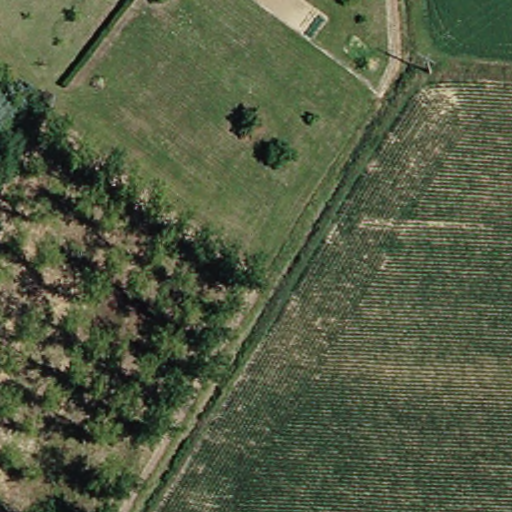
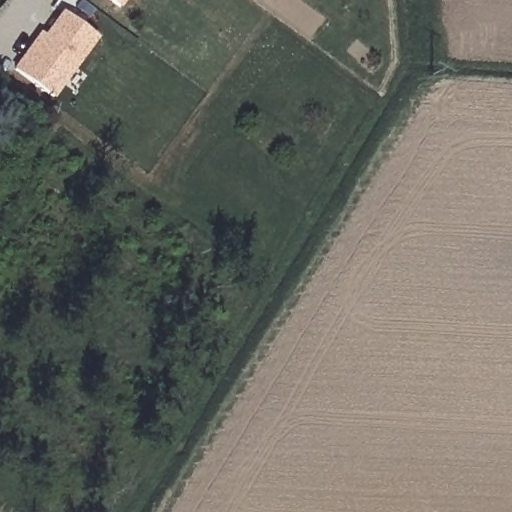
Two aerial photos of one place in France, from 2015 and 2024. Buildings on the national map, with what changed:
new [(110,0),(126,0),(121,8),(110,0)]
new [(40,32),(45,35),(62,11),(99,38),(54,99),(13,69),(40,32)]

